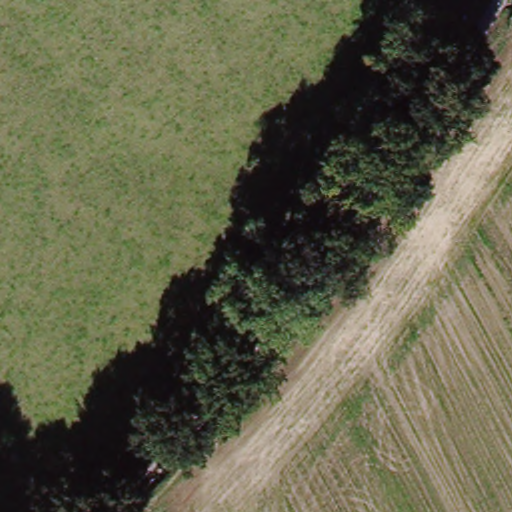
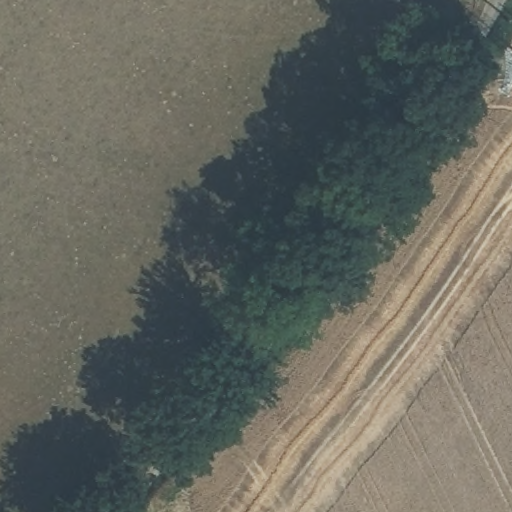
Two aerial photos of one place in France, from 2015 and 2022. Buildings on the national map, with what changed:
[]

